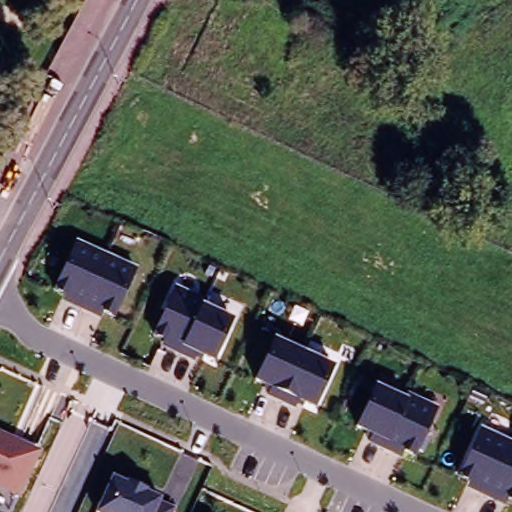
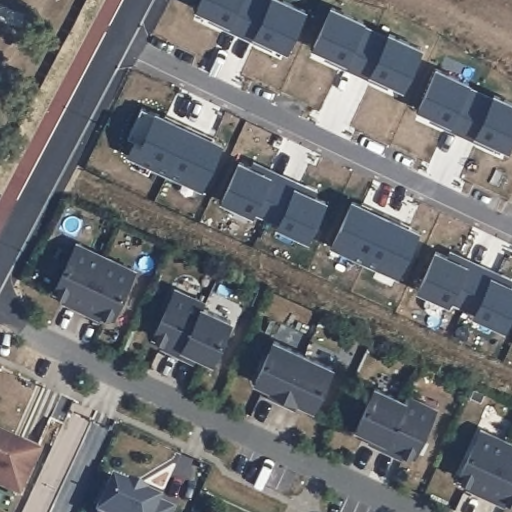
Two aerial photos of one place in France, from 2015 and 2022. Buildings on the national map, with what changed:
new [(284,46),(239,26),(194,5),(197,0),(285,0),(302,7),(284,46)]
new [(323,56),(325,51),(311,44),(329,5),(361,19),(359,23),(371,29),(384,35),(387,31),(418,46),(400,85),(386,79),(383,84),(353,70),(323,56)]
new [(206,17),(208,12),(239,26),(269,40),(267,45),(236,31),(206,17)]
new [(458,132),(428,118),(430,113),(416,106),(434,67),(466,81),(464,85),(477,91),(489,97),(491,93),(512,103),(512,133),(506,147),(461,126),(490,140),(488,146),(458,132)]
new [(168,118),(169,116),(186,123),(164,170),(125,152),(131,137),(124,134),(138,104),(168,118)]
new [(202,131),(201,133),(218,141),(198,185),(164,170),(186,123),(202,131)]
new [(275,223),(276,221),(264,215),(251,209),(249,212),(219,198),(236,160),(249,166),(251,160),(282,174),(313,188),(310,194),(322,199),(304,237),(275,223)]
new [(349,200),(366,207),(367,205),(383,213),(361,259),(329,244),(349,200)]
new [(415,230),(394,274),(361,259),(383,213),(399,220),(399,222),(415,230)]
unchanged [(115,319),(103,313),(100,320),(62,303),(65,296),(54,291),(76,240),(138,269),(115,319)]
new [(471,313),(472,310),(459,305),(447,299),(445,301),(415,288),(433,250),(476,270),(445,256),(448,250),(478,264),(509,278),(506,284),(512,287),(512,303),(501,327),(471,313)]
unchanged [(161,348),(164,341),(153,337),(176,285),(205,298),(201,305),(235,319),(215,364),(203,359),(202,362),(196,359),(193,363),(161,348)]
unchanged [(335,366),(316,409),(304,404),(303,408),(296,406),(295,410),(266,396),(269,392),(263,389),(264,386),(254,382),(273,338),(335,366)]
unchanged [(354,428),(374,385),(409,400),(414,394),(439,406),(416,456),(404,451),(401,458),(369,443),(371,440),(364,438),(366,434),(354,428)]
unchanged [(512,441),(512,503),(507,500),(504,506),(467,489),(469,484),(458,478),(481,426),(512,441)]
unchanged [(0,489),(0,432),(42,451),(21,498),(0,489)]
unchanged [(176,508),(174,512),(96,512),(112,476),(161,499),(176,508)]

